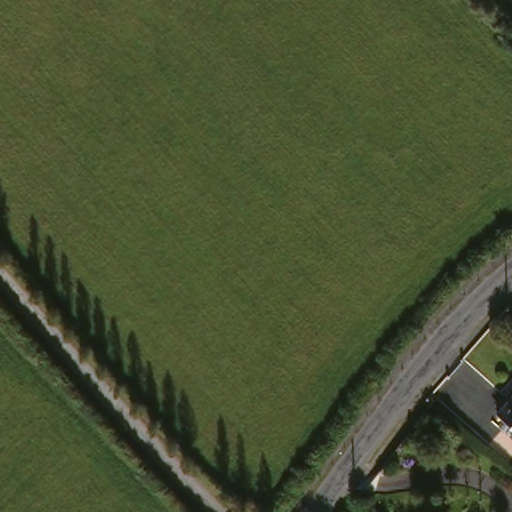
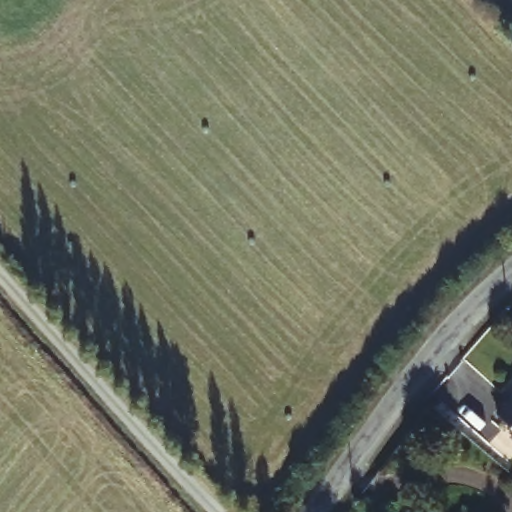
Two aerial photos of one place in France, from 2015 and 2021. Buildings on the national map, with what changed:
unchanged [(512,427),(497,415),(512,399),(512,427)]

